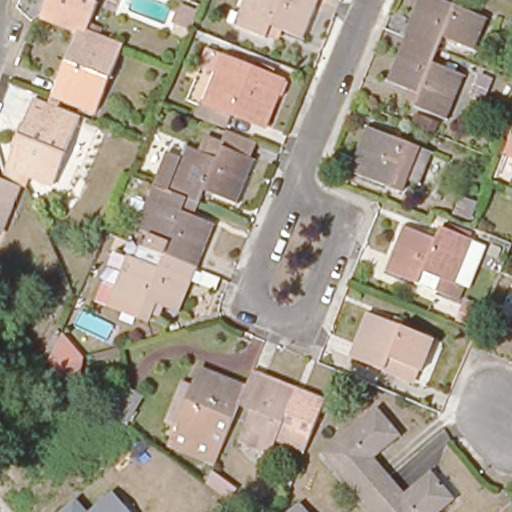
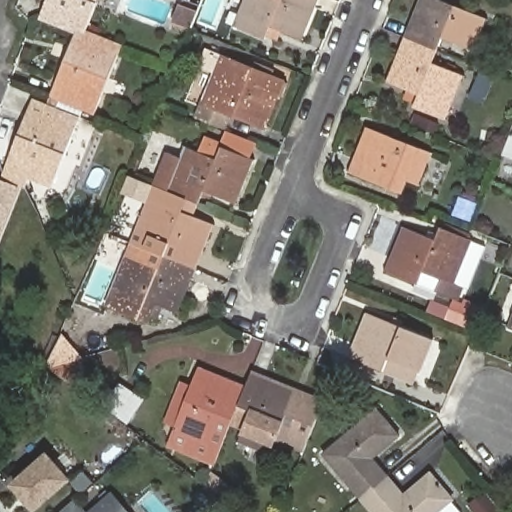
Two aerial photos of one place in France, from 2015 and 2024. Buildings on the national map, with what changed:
unchanged [(49,0),(100,0),(84,39),(77,36),(40,21),(49,0)]
unchanged [(306,44),(277,31),(271,43),(239,31),(252,0),(324,0),(306,44)]
unchanged [(447,38),(442,50),(413,39),(410,38),(426,0),(446,0),(490,19),(478,50),(447,38)]
unchanged [(51,100),(77,36),(84,39),(121,53),(96,117),(61,103),(58,113),(47,109),(51,100)]
unchanged [(437,63),(467,76),(450,120),(419,107),(424,95),(392,82),(410,38),(413,39),(442,50),(437,63)]
unchanged [(512,45),(512,70),(503,66),(512,45)]
unchanged [(260,62),(280,69),(277,77),(291,83),(286,97),(283,96),(271,127),(234,112),(228,128),(215,123),(202,117),(208,102),(221,72),(204,65),(211,50),(227,57),(257,69),(260,62)]
unchanged [(35,108),(78,125),(53,188),(31,179),(26,192),(18,188),(5,183),(10,171),(35,108)]
unchanged [(240,204),(209,190),(203,203),(191,198),(179,194),(161,186),(159,186),(173,152),(185,157),(189,146),(205,152),(210,139),(225,145),(231,132),(261,144),(255,158),(258,159),(240,204)]
unchanged [(372,132),(435,158),(423,190),(413,186),(408,199),(355,178),(372,132)]
unchanged [(506,159),(512,146),(512,161),(507,159),(506,159)]
unchanged [(16,193),(0,234),(0,186),(16,193)]
unchanged [(179,194),(191,198),(186,210),(218,224),(200,269),(148,249),(154,234),(143,229),(161,186),(179,194)]
unchanged [(470,220),(453,213),(460,197),(476,204),(470,220)]
unchanged [(408,227),(440,240),(445,228),(476,239),(459,283),(469,287),(463,301),(441,291),(446,279),(427,272),(422,284),(390,271),(408,227)]
unchanged [(509,247),(502,264),(485,257),(491,241),(509,247)]
unchanged [(133,256),(144,260),(148,249),(200,269),(183,313),(161,304),(154,322),(112,304),(133,256)]
unchanged [(425,377),(393,364),(388,376),(354,361),(371,318),(437,344),(425,377)]
unchanged [(87,399),(70,386),(57,378),(72,344),(92,368),(87,399)]
unchanged [(183,425),(171,420),(187,382),(198,387),(205,370),(249,388),(248,391),(243,405),(220,460),(219,463),(175,445),(183,425)]
unchanged [(255,410),(243,405),(248,391),(249,388),(250,387),(256,373),(328,403),(312,441),(309,449),(281,438),(275,453),(243,441),(255,410)]
unchanged [(105,393),(112,398),(119,386),(138,397),(120,425),(96,406),(105,393)]
unchanged [(377,408),(399,436),(373,457),(389,476),(377,486),(361,499),(323,454),(377,408)]
new [(35,512),(33,512),(8,484),(47,450),(72,480),(35,512)]
unchanged [(211,483),(216,472),(240,489),(232,499),(211,483)]
unchanged [(377,486),(389,476),(404,494),(430,473),(453,500),(439,512),(372,512),(361,499),(377,486)]
unchanged [(294,494),(311,512),(276,512),(274,510),(294,494)]
unchanged [(93,512),(112,496),(126,512),(93,512)]
unchanged [(85,512),(60,512),(73,501),(85,512)]

